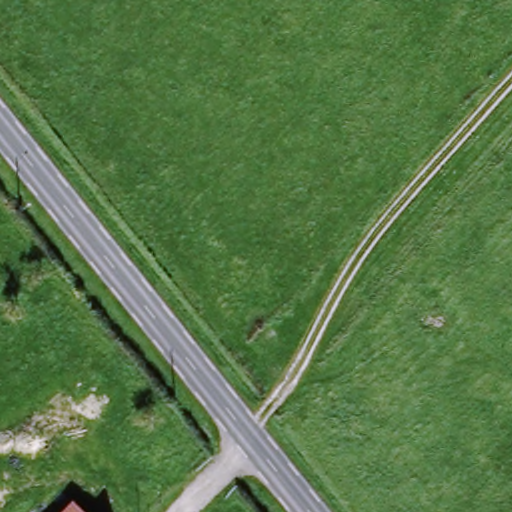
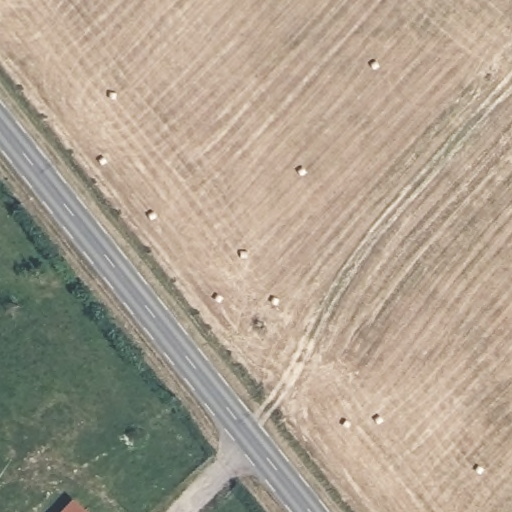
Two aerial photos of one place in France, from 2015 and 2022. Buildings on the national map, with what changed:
unchanged [(80,502),(89,512),(70,512),(80,502)]

